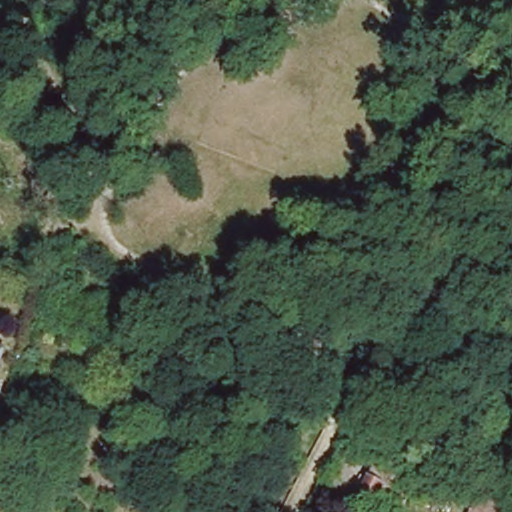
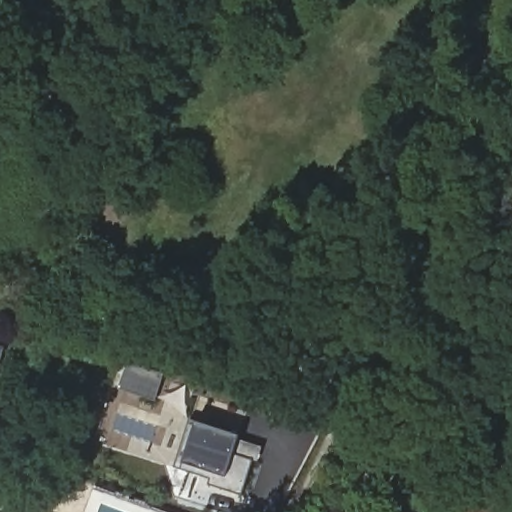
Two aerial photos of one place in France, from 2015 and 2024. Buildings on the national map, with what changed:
unchanged [(0,369),(0,349),(6,350),(0,369)]
new [(131,364),(161,374),(154,396),(124,386),(131,364)]
new [(256,461),(252,460),(241,494),(208,484),(210,478),(174,467),(190,418),(198,421),(240,435),(239,438),(261,446),(256,461)]
unchanged [(387,506),(355,490),(375,461),(403,475),(387,506)]
unchanged [(469,512),(478,496),(508,511),(507,512),(469,512)]

